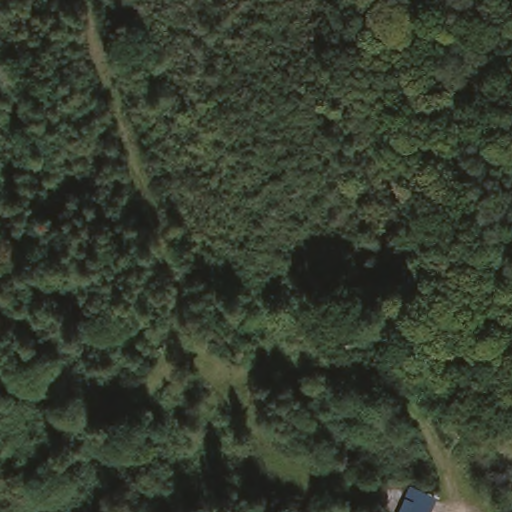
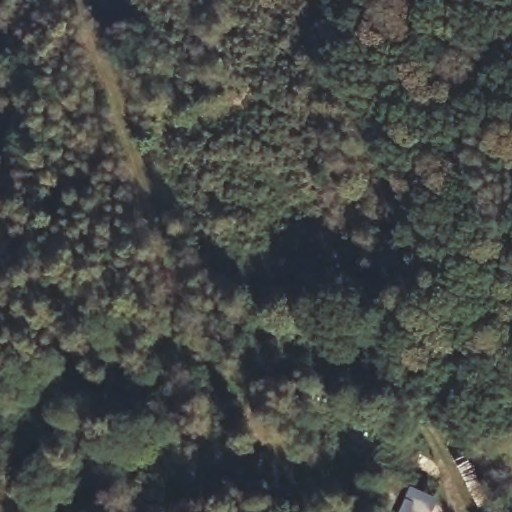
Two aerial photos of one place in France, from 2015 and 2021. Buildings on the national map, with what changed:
unchanged [(437,503),(433,512),(398,512),(408,489),(437,503)]

